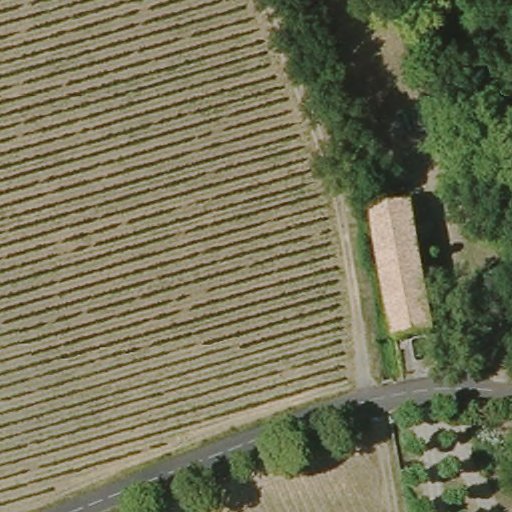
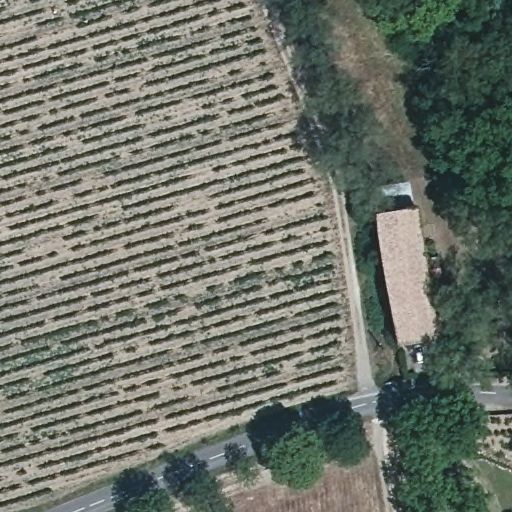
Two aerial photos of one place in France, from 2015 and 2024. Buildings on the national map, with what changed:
unchanged [(372,206),(410,200),(428,304),(440,301),(442,310),(445,327),(395,336),(375,218),(372,206)]
unchanged [(497,360),(512,359),(512,378),(496,379),(497,360)]

